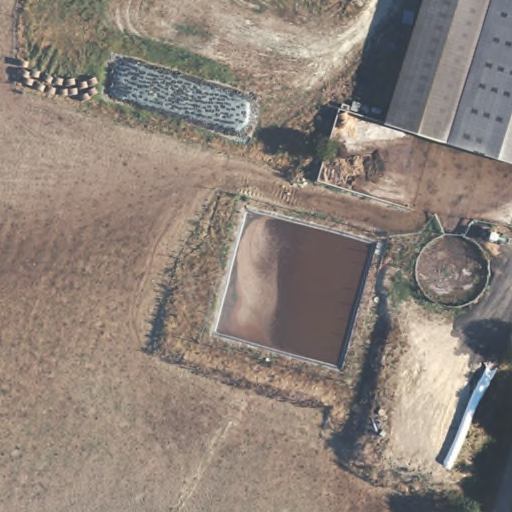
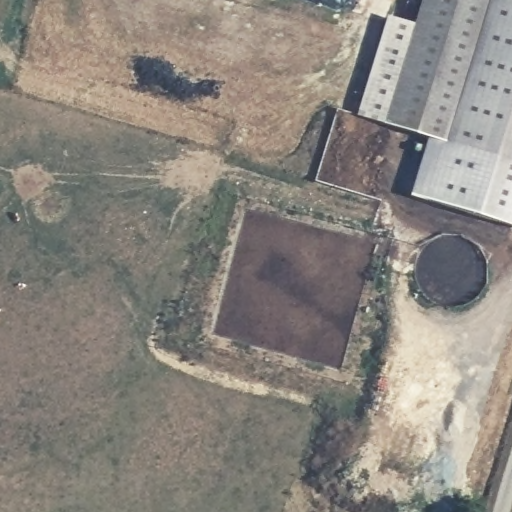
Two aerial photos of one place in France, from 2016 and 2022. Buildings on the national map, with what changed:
unchanged [(386,122),(422,0),(494,0),(451,141),(386,122)]
unchanged [(451,141),(494,0),(512,0),(512,159),(451,141)]
new [(410,195),(429,135),(451,141),(512,159),(512,228),(410,195)]

